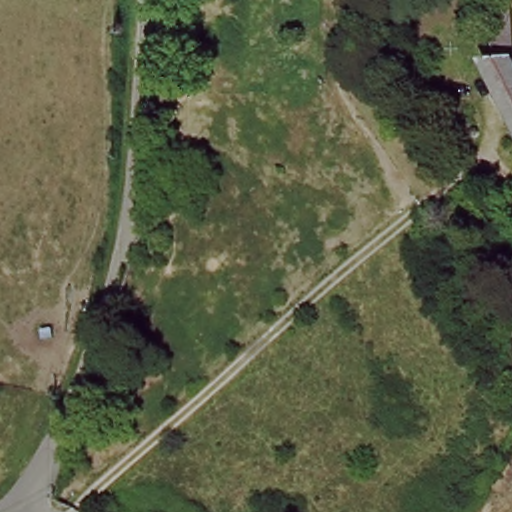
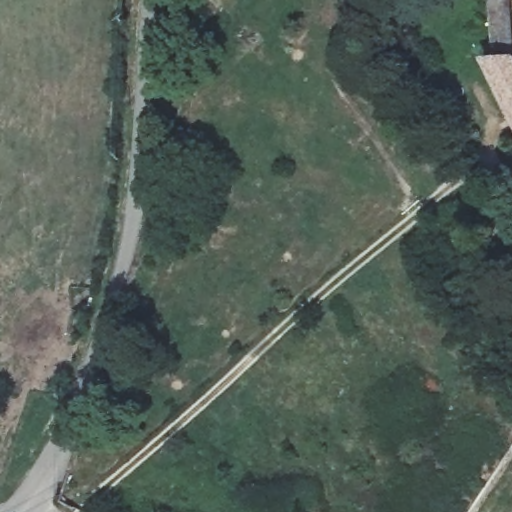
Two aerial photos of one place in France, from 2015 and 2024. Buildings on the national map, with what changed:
unchanged [(512,60),(512,123),(479,64),(495,55),(495,41),(508,40),(509,55),(512,60)]

